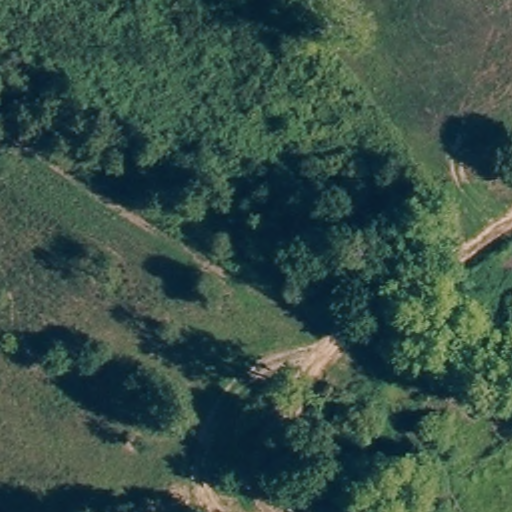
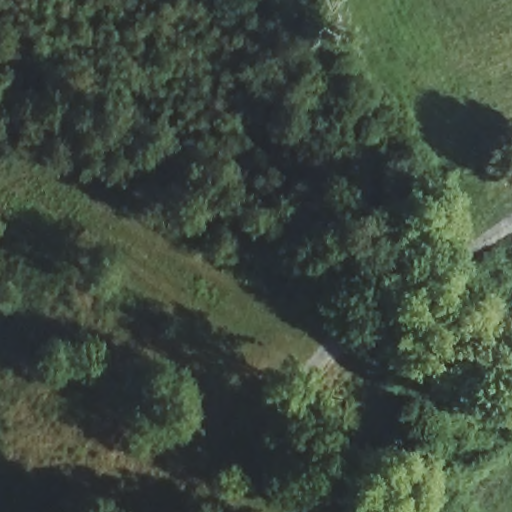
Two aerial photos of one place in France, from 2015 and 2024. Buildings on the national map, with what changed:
unchanged [(478,326),(511,317),(512,322),(512,367),(490,373),(478,326)]

